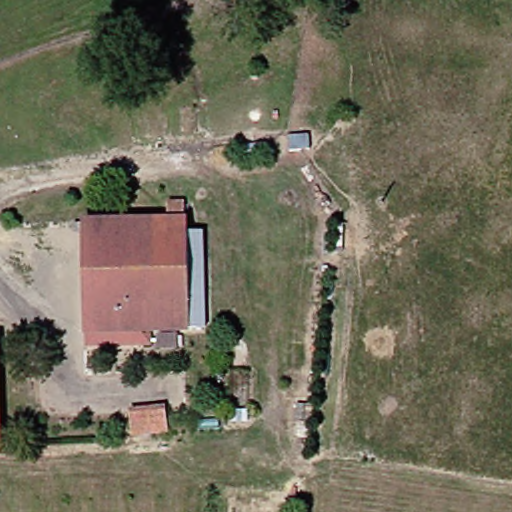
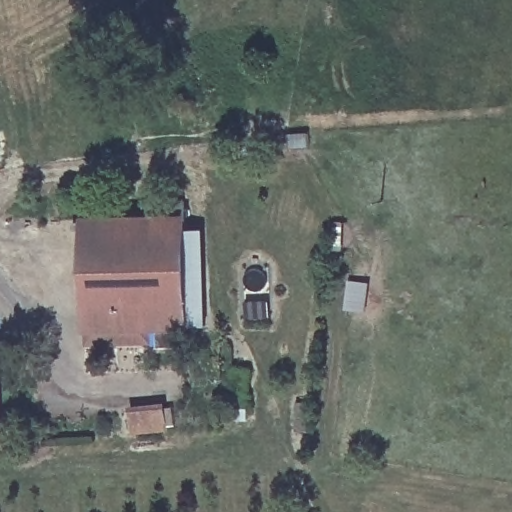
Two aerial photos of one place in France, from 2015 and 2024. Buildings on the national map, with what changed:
unchanged [(88,347),(88,331),(86,222),(169,221),(168,206),(186,205),(189,330),(135,330),(135,346),(88,347)]
unchanged [(6,441),(0,442),(0,340),(1,340),(6,441)]
unchanged [(137,412),(170,410),(172,432),(139,435),(137,412)]

